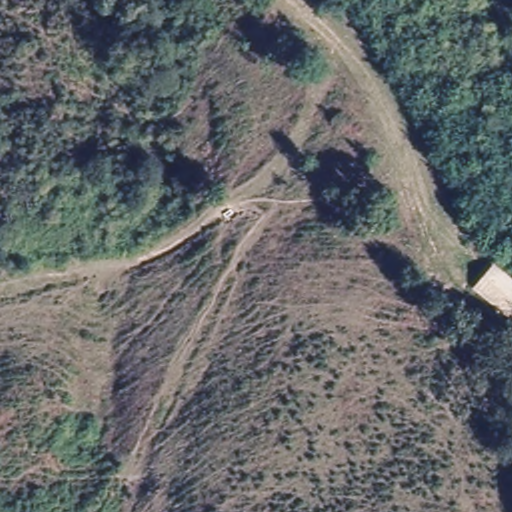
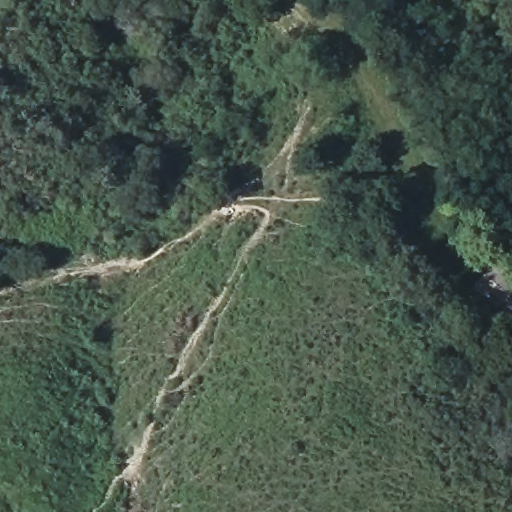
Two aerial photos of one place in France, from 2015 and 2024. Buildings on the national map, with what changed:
unchanged [(490,267),(512,284),(512,321),(474,290),(490,267)]

